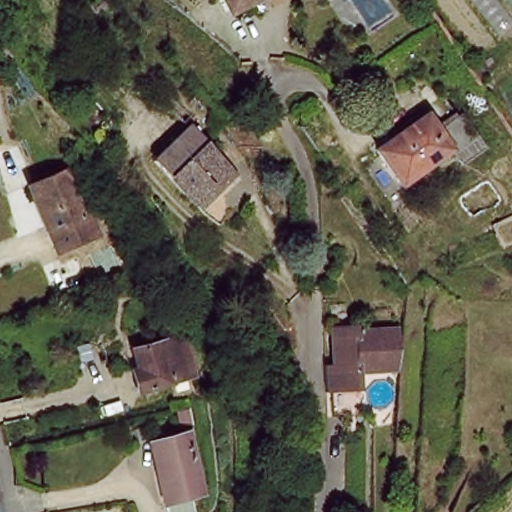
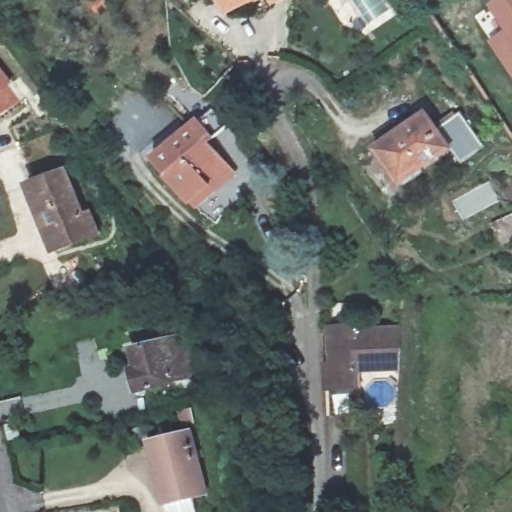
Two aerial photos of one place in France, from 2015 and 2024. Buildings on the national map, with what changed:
unchanged [(234,12),(227,0),(254,0),(234,12)]
new [(505,29),(488,5),(495,0),(512,0),(512,80),(486,40),(505,29)]
new [(9,87),(20,101),(0,116),(0,65),(13,83),(9,87)]
unchanged [(430,127),(455,109),(479,145),(454,162),(444,148),(415,169),(414,165),(391,181),(368,148),(420,112),(430,127)]
unchanged [(231,166),(189,197),(156,155),(195,121),(231,166)]
unchanged [(86,218),(90,216),(97,235),(56,253),(30,187),(68,172),(86,218)]
unchanged [(505,245),(494,224),(512,215),(512,241),(505,245)]
unchanged [(328,324),(355,321),(357,329),(395,325),(398,363),(359,368),(363,412),(332,415),(329,387),(323,388),(321,363),(321,361),(330,360),(328,324)]
unchanged [(165,343),(187,338),(196,376),(138,391),(132,371),(138,369),(133,349),(165,341),(165,343)]
unchanged [(205,495),(167,504),(159,474),(162,473),(155,441),(191,433),(205,495)]

